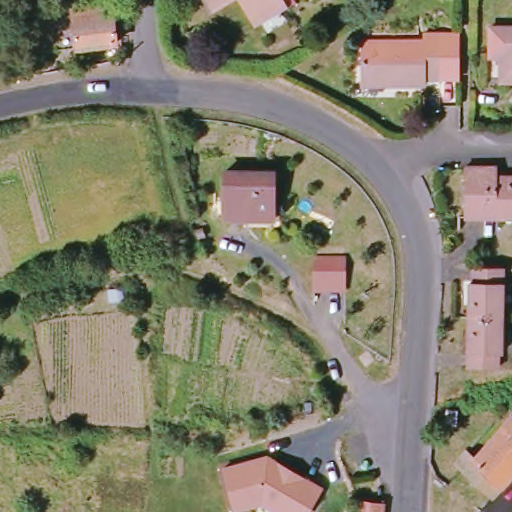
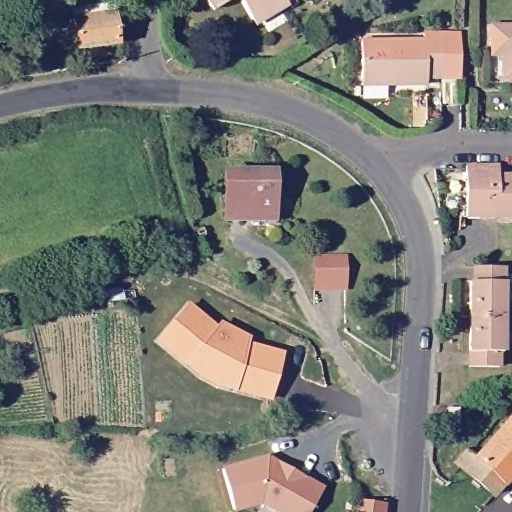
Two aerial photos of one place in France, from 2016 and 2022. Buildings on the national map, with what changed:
unchanged [(205,0),(231,0),(212,12),(205,0)]
unchanged [(264,24),(252,20),(239,0),(291,0),(294,5),(264,24)]
unchanged [(127,40),(70,41),(69,16),(82,16),(82,5),(97,5),(125,4),(127,40)]
unchanged [(490,55),(490,26),(512,26),(512,78),(503,78),(502,55),(490,55)]
unchanged [(370,80),(369,47),(417,46),(417,38),(434,38),(434,80),(420,80),(421,87),(399,87),(370,89),(370,80)]
unchanged [(512,177),(512,213),(499,213),(499,219),(462,219),(464,167),(497,167),(497,177),(512,177)]
unchanged [(247,224),(230,224),(229,176),(277,175),(279,216),(279,223),(247,224)]
unchanged [(317,291),(316,258),(347,257),(347,290),(317,291)]
unchanged [(497,267),(504,267),(505,353),(501,353),(502,368),(470,369),(470,283),(476,283),(475,267),(497,267)]
new [(210,385),(192,374),(156,342),(190,303),(217,327),(220,322),(250,338),(249,344),(282,352),(270,403),(210,385)]
unchanged [(434,381),(447,382),(447,396),(434,395),(434,381)]
unchanged [(467,452),(478,460),(512,429),(512,482),(492,498),(457,462),(467,452)]
unchanged [(311,512),(275,512),(262,504),(237,511),(225,469),(272,456),(325,487),(311,512)]
unchanged [(357,501),(384,505),(384,512),(356,512),(357,501)]

